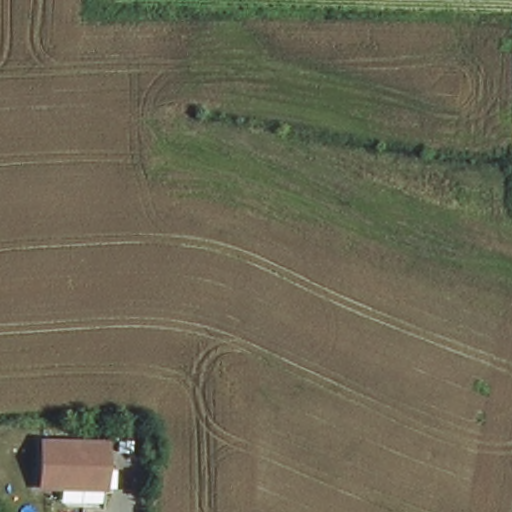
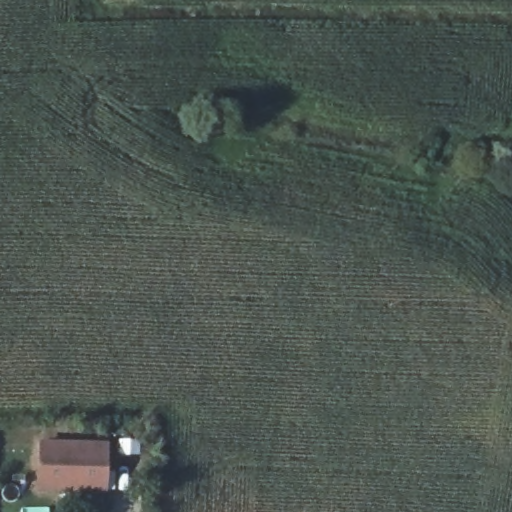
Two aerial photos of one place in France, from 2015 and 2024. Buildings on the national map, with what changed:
unchanged [(109,444),(108,494),(39,492),(41,441),(109,444)]

